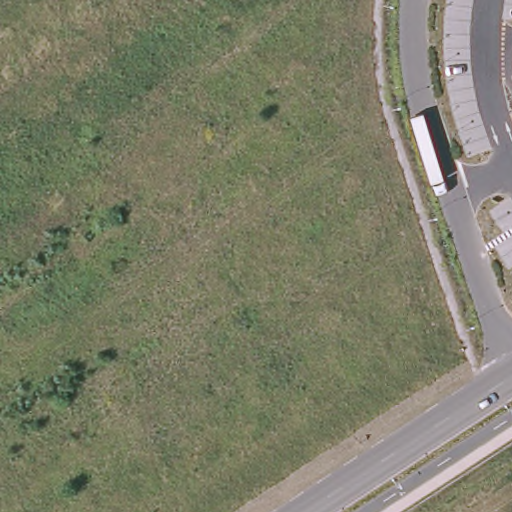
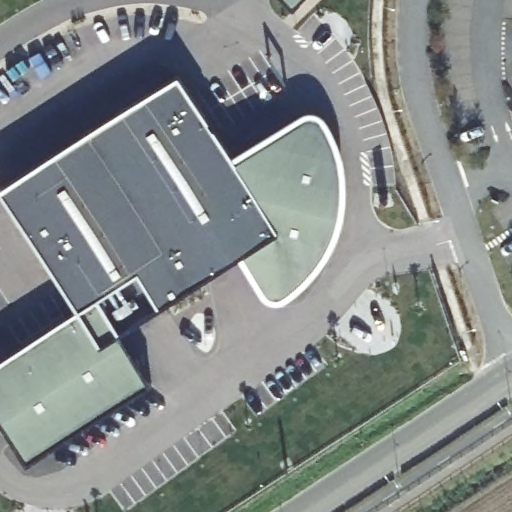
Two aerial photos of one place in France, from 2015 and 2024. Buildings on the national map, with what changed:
new [(284,0),(302,0),(293,9),(284,0)]
new [(178,74),(231,158),(302,112),(310,110),(318,112),(323,115),(330,124),(337,142),(344,164),(346,185),(345,209),(339,234),(330,254),(318,271),(303,288),(286,301),(277,303),(270,301),(265,300),(262,296),(238,259),(121,335),(148,384),(27,463),(0,422),(0,359),(76,311),(0,192),(0,188),(178,74)]

